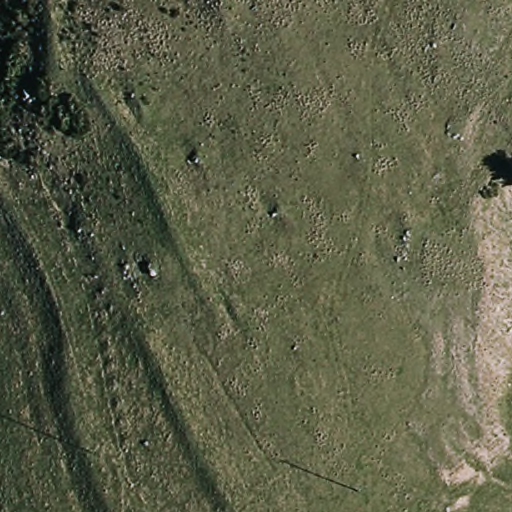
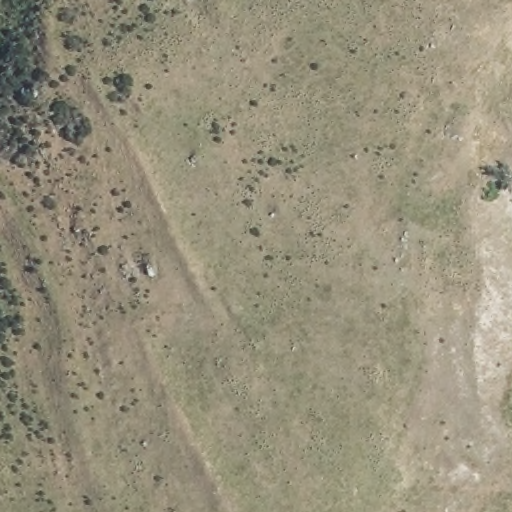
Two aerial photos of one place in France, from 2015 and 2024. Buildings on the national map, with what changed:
[]

